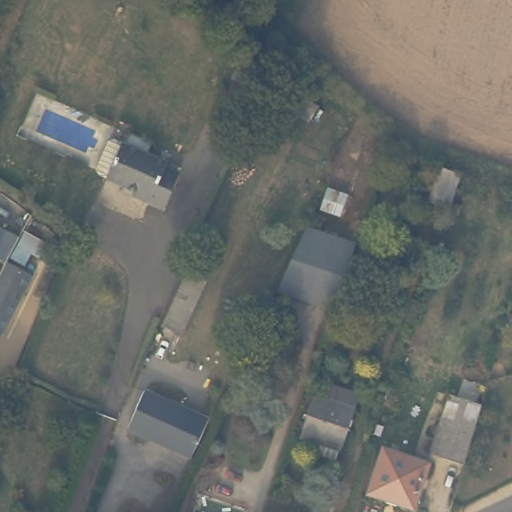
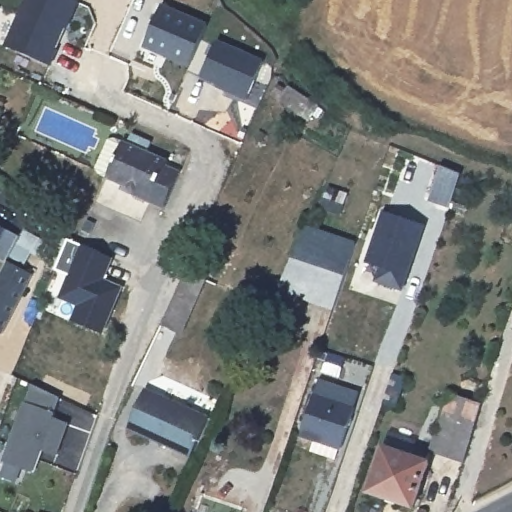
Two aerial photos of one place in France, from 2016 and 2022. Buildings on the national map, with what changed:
new [(3,45),(23,0),(74,0),(79,2),(67,30),(65,29),(57,46),(59,47),(51,65),(3,45)]
new [(161,4),(208,24),(190,67),(144,47),(161,4)]
new [(245,101),(217,89),(219,85),(201,79),(220,40),(265,60),(245,101)]
unchanged [(324,110),(312,125),(284,105),(295,90),(324,110)]
unchanged [(116,176),(107,173),(104,167),(116,139),(124,138),(131,141),(135,143),(139,134),(159,142),(156,151),(176,160),(174,165),(188,170),(172,209),(141,195),(143,190),(115,178),(116,176)]
unchanged [(461,174),(448,209),(426,201),(439,164),(461,174)]
demolished [(412,189),(407,204),(389,197),(394,184),(412,189)]
unchanged [(331,187),(349,193),(342,216),(323,210),(326,199),(329,187),(331,187)]
new [(383,210),(423,225),(403,291),(373,282),(377,268),(364,263),(383,210)]
unchanged [(19,235),(14,244),(32,254),(25,268),(8,259),(7,261),(0,258),(0,225),(19,235)]
unchanged [(321,230),(364,245),(348,292),(299,275),(295,274),(315,227),(321,230)]
unchanged [(22,229),(44,240),(36,256),(14,244),(22,229)]
new [(77,305),(59,298),(69,275),(56,269),(68,238),(81,244),(114,256),(104,278),(123,285),(104,333),(71,320),(77,305)]
unchanged [(0,275),(8,259),(34,273),(3,332),(0,331),(0,275)]
unchanged [(184,270),(204,280),(179,333),(158,324),(184,270)]
unchanged [(299,275),(348,292),(345,302),(343,308),(291,291),(288,290),(295,274),(299,275)]
unchanged [(406,378),(396,407),(382,403),(392,373),(406,378)]
unchanged [(346,445),(342,458),(319,450),(323,438),(308,433),(322,390),(326,376),(367,390),(362,404),(348,446),(346,445)]
new [(53,416),(69,422),(57,456),(41,450),(33,472),(3,462),(24,401),(33,384),(61,396),(55,412),(53,416)]
unchanged [(435,446),(455,388),(486,398),(468,457),(435,446)]
unchanged [(207,417),(209,417),(191,457),(188,456),(127,428),(145,389),(207,417)]
unchanged [(433,458),(417,503),(372,486),(387,442),(433,458)]

